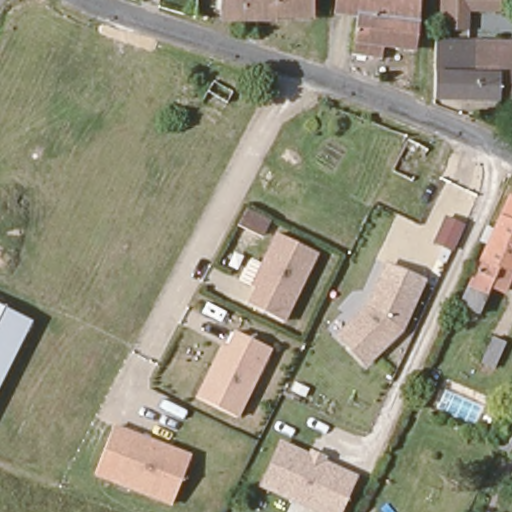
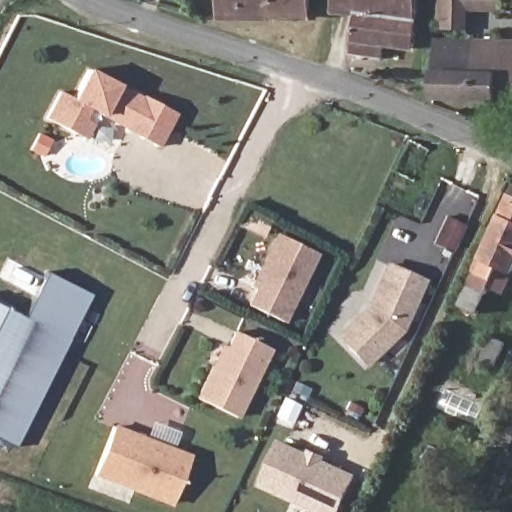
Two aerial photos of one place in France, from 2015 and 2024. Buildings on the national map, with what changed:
unchanged [(312,23),(199,24),(199,0),(311,0),(312,23)]
new [(334,14),(336,0),(361,0),(359,17),(334,14)]
unchanged [(418,47),(387,45),(385,59),(360,56),(361,42),(356,38),(361,0),(420,0),(418,47)]
unchanged [(442,104),(443,0),(501,0),(501,12),(471,12),(467,36),(512,37),(512,105),(442,104)]
new [(157,148),(101,116),(89,110),(84,119),(94,124),(86,140),(45,119),(58,92),(71,99),(88,67),(119,85),(177,114),(157,148)]
demolished [(221,76),(241,86),(236,96),(216,85),(221,76)]
unchanged [(464,302),(474,282),(493,241),(484,237),(492,221),(501,225),(512,201),(512,266),(501,261),(488,288),(479,308),(464,302)]
unchanged [(454,208),(472,216),(459,241),(443,233),(454,208)]
unchanged [(316,253),(282,321),(248,304),(260,280),(255,277),(262,266),(278,234),(316,253)]
unchanged [(427,285),(404,333),(367,366),(342,337),(372,310),(392,268),(427,285)]
new [(24,317),(45,272),(89,294),(11,447),(0,441),(0,386),(32,322),(24,317)]
unchanged [(0,305),(32,322),(0,386),(0,305)]
unchanged [(503,332),(509,336),(497,364),(489,361),(483,357),(488,347),(496,330),(503,332)]
unchanged [(238,420),(199,401),(216,368),(222,357),(227,360),(239,335),(273,352),(238,420)]
unchanged [(112,430),(189,460),(170,506),(94,476),(112,430)]
unchanged [(350,475),(332,512),(323,512),(272,487),(292,447),(350,475)]

